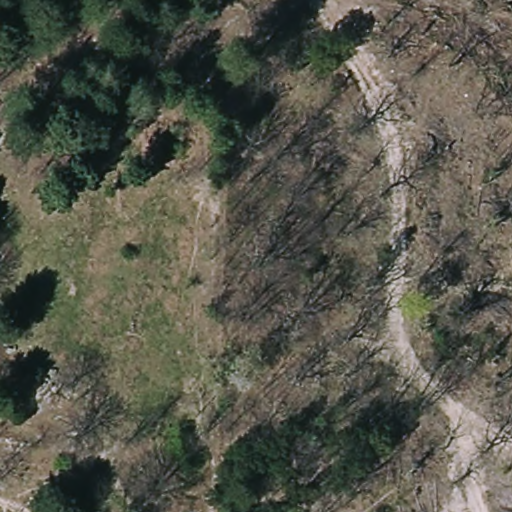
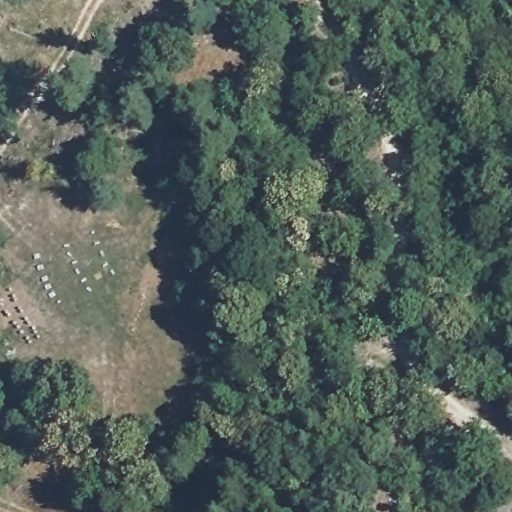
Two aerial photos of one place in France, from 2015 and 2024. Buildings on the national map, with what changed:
[]

